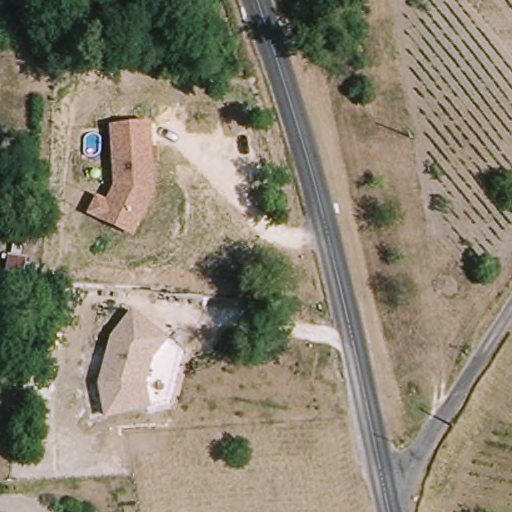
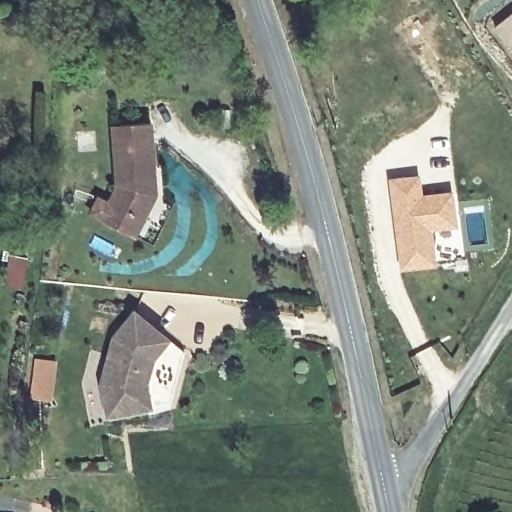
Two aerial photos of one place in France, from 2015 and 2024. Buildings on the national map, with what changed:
new [(491,31),(512,13),(512,57),(491,31)]
unchanged [(97,194),(108,200),(117,182),(111,124),(152,121),(159,195),(136,237),(88,212),(97,194)]
new [(419,173),(423,193),(452,190),(457,227),(432,230),(436,266),(399,271),(387,177),(419,173)]
unchanged [(99,380),(112,335),(134,309),(171,340),(157,357),(149,378),(155,407),(109,421),(99,380)]
unchanged [(406,343),(415,382),(398,385),(391,347),(406,343)]

